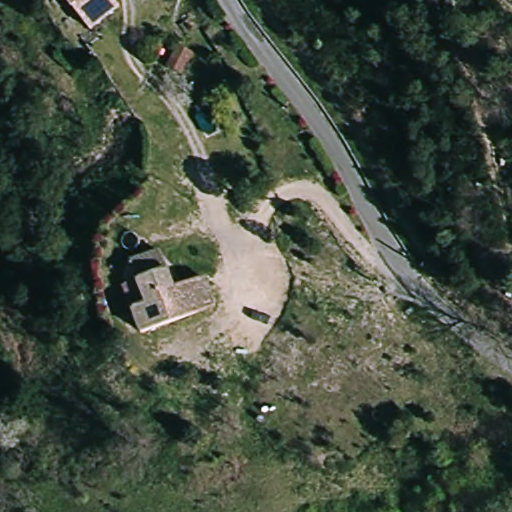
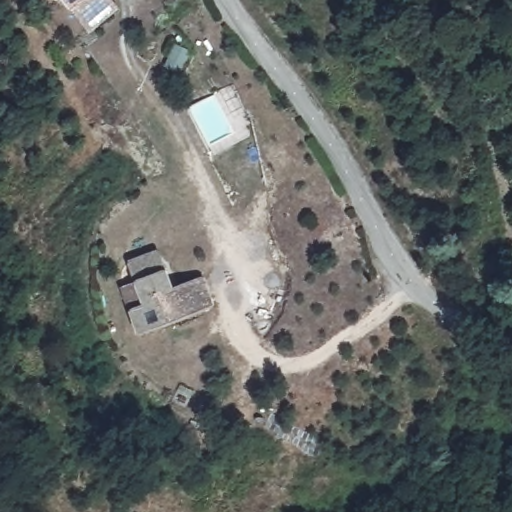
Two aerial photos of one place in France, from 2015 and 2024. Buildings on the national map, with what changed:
unchanged [(92,32),(63,0),(111,0),(118,10),(92,32)]
unchanged [(192,54),(182,77),(165,69),(173,46),(192,54)]
unchanged [(135,280),(128,259),(160,249),(172,286),(202,276),(213,307),(140,332),(130,303),(125,285),(135,280)]

